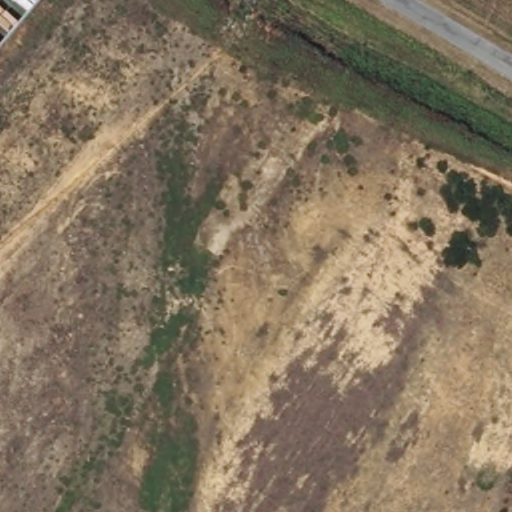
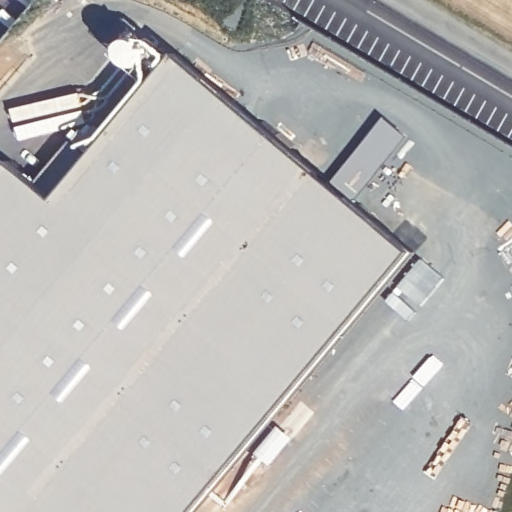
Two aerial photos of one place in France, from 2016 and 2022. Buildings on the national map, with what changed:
new [(61,145),(80,161),(167,57),(404,256),(188,512),(0,512),(0,164),(26,187),(61,145)]

